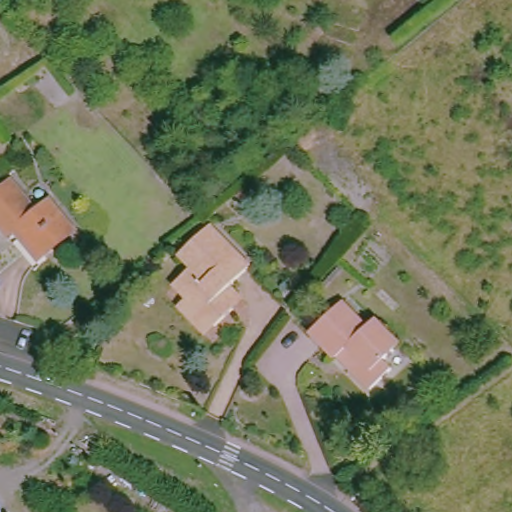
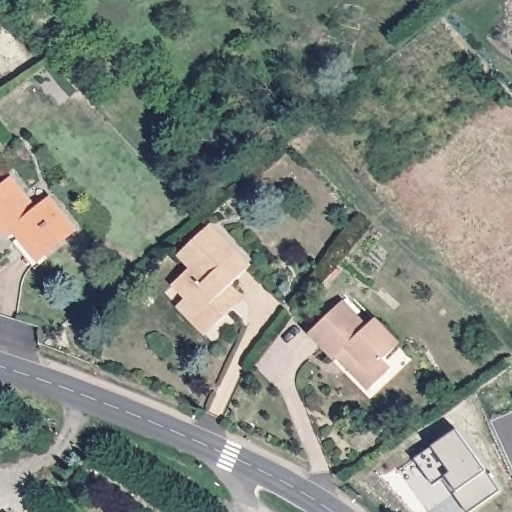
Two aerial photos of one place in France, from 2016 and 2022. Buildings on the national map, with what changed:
unchanged [(3,180),(31,211),(42,201),(68,231),(33,259),(9,230),(0,237),(0,182),(3,180)]
unchanged [(202,229),(246,270),(219,297),(231,308),(212,327),(169,286),(188,267),(176,255),(202,229)]
unchanged [(334,305),(358,329),(364,323),(382,341),(368,356),(384,371),(363,392),(344,374),(355,362),(339,350),(329,363),(303,336),(334,305)]
new [(458,428),(502,490),(471,512),(469,512),(455,493),(459,490),(448,476),(436,485),(416,459),(458,428)]

